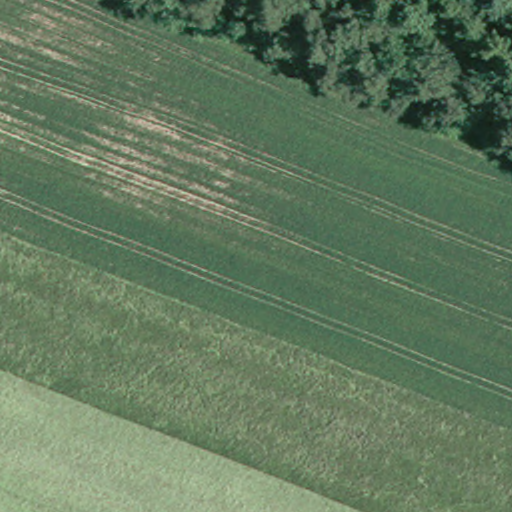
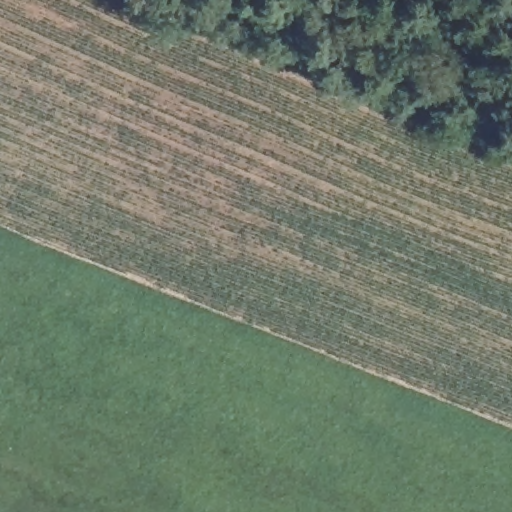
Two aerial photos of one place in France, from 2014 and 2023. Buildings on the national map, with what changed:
[]

